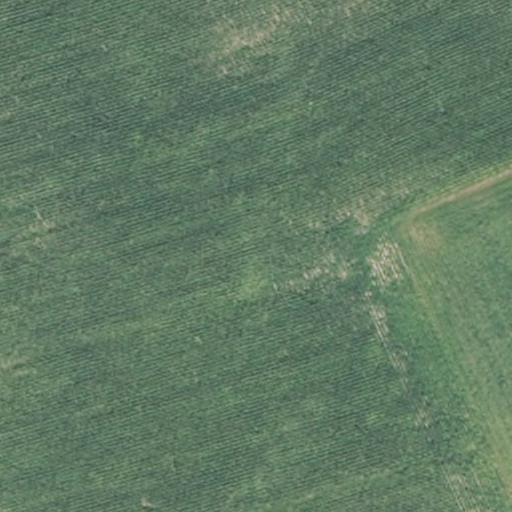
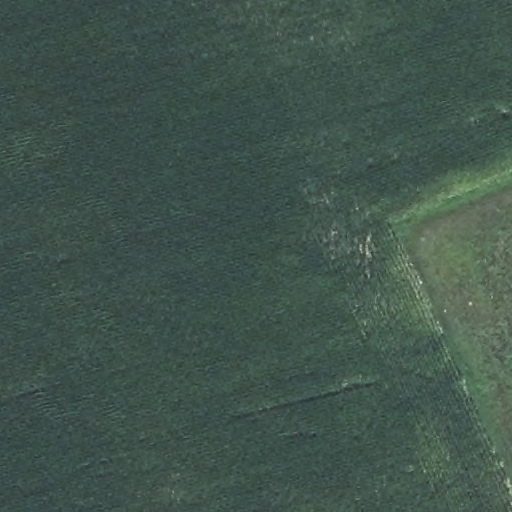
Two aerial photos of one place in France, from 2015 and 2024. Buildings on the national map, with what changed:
[]

